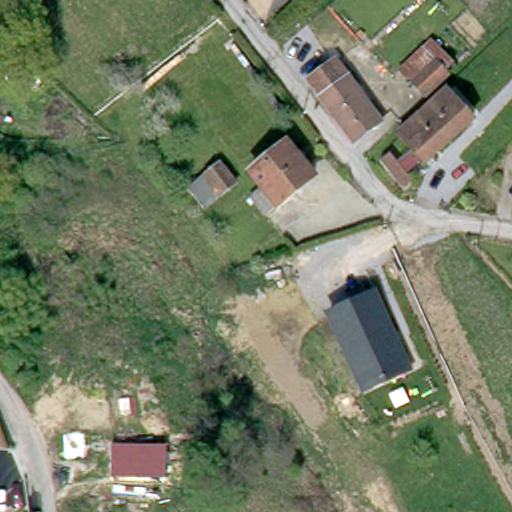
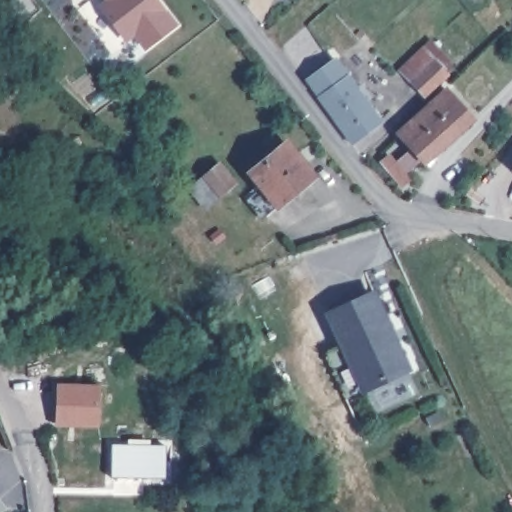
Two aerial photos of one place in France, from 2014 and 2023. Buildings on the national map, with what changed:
new [(146,48),(135,32),(126,39),(102,7),(111,1),(111,0),(157,0),(176,26),(146,48)]
unchanged [(425,89),(403,67),(432,37),(455,57),(446,67),(448,69),(425,89)]
unchanged [(132,42),(140,53),(128,61),(122,50),(132,42)]
unchanged [(308,75),(338,55),(382,115),(352,136),(308,75)]
unchanged [(427,156),(400,127),(447,85),(473,114),(427,156)]
unchanged [(285,140),(310,171),(262,210),(247,193),(260,184),(248,169),(285,140)]
unchanged [(382,162),(389,155),(393,161),(412,181),(405,187),(382,162)]
unchanged [(237,184),(207,208),(191,190),(220,164),(237,184)]
unchanged [(411,368),(361,393),(328,310),(378,290),(411,368)]
new [(55,426),(57,382),(101,384),(100,427),(55,426)]
unchanged [(165,447),(165,476),(112,477),(112,445),(165,447)]

